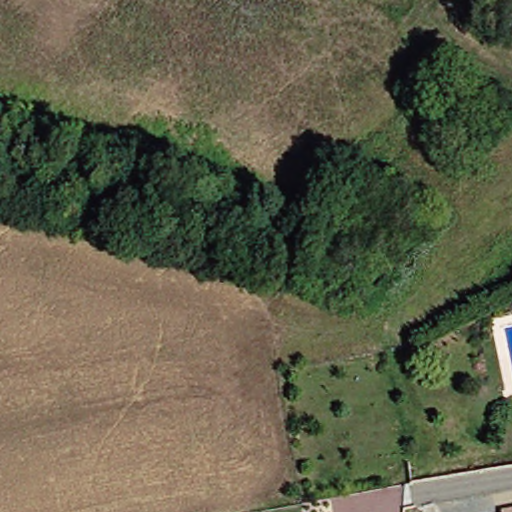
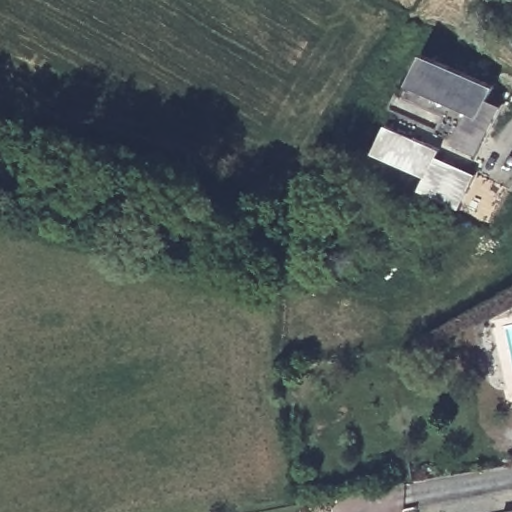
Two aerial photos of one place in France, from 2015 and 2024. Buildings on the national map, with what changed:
new [(422,58),(490,91),(485,104),(498,111),(474,158),(450,146),(466,115),(408,86),(422,58)]
new [(385,127),(437,151),(433,159),(471,177),(455,212),(416,194),(422,179),(372,155),(385,127)]

